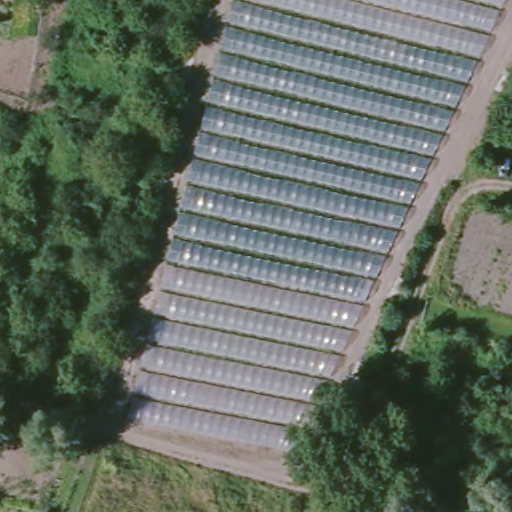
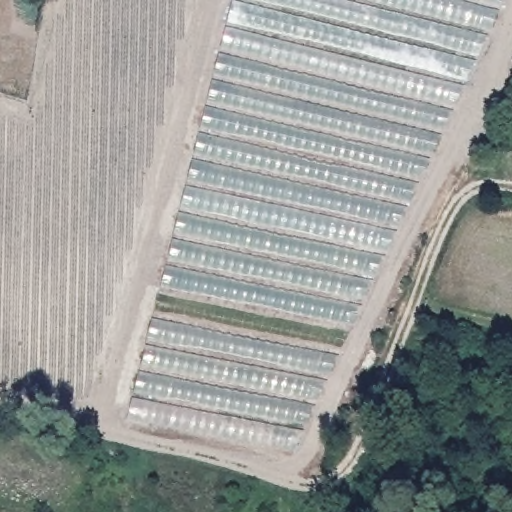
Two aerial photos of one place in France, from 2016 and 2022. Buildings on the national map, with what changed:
unchanged [(122,418),(228,0),(503,0),(294,448),(122,418)]

